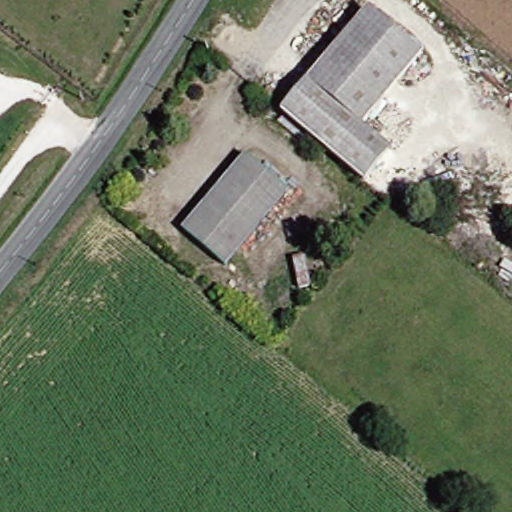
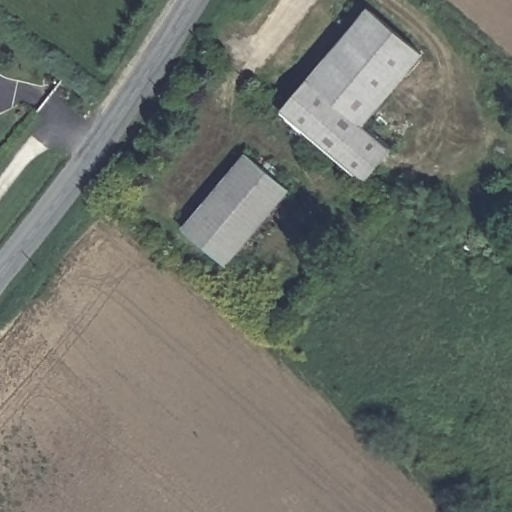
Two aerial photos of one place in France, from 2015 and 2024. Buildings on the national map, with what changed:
unchanged [(288,110),(378,6),(432,51),(374,120),(398,145),(369,179),(288,110)]
unchanged [(299,190),(233,260),(192,222),(257,151),(299,190)]

